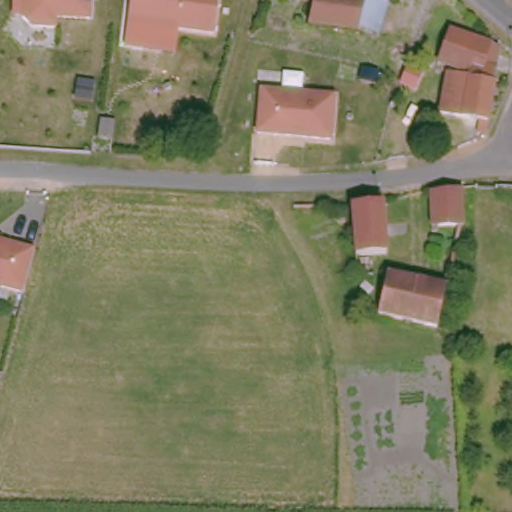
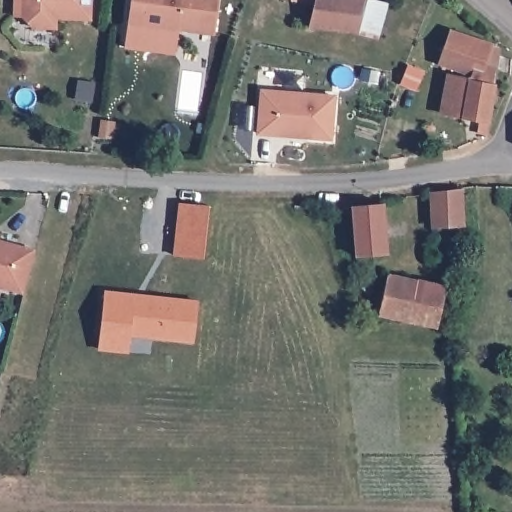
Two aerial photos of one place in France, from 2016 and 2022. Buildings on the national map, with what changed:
unchanged [(56,17),(56,27),(31,26),(23,17),(23,0),(91,0),(90,19),(56,17)]
unchanged [(128,27),(132,0),(219,0),(214,37),(128,27)]
unchanged [(291,0),(299,0),(298,2),(291,0)]
unchanged [(359,36),(312,26),(319,0),(345,0),(350,1),(368,5),(359,36)]
unchanged [(350,1),(350,0),(370,0),(368,5),(350,1)]
unchanged [(498,81),(474,74),(475,67),(448,61),(457,27),(505,41),(498,81)]
unchanged [(489,131),(488,135),(482,134),(484,119),(445,111),(452,74),(473,77),(474,74),(498,81),(489,131)]
unchanged [(395,97),(400,79),(413,83),(408,101),(395,97)]
unchanged [(261,135),(262,92),(336,93),(335,137),(307,136),(304,132),(298,132),(295,136),(261,135)]
unchanged [(470,230),(438,233),(434,192),(466,189),(470,230)]
unchanged [(390,257),(360,260),(356,209),(385,204),(387,204),(390,257)]
new [(179,205),(207,205),(201,257),(174,255),(179,205)]
unchanged [(21,293),(0,288),(0,243),(31,251),(21,293)]
unchanged [(449,292),(438,331),(400,319),(385,320),(395,279),(449,292)]
new [(103,292),(197,302),(193,342),(129,335),(127,351),(97,348),(99,331),(103,292)]

